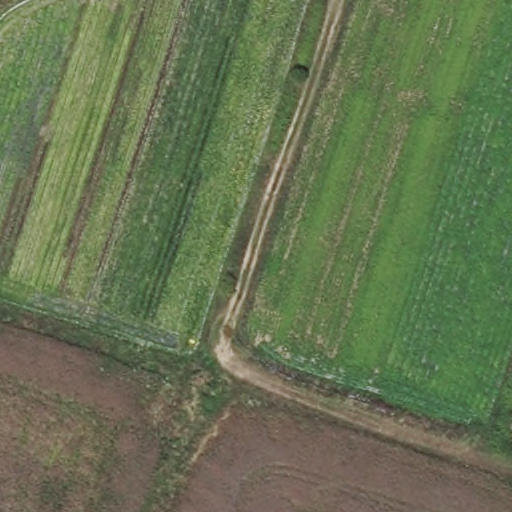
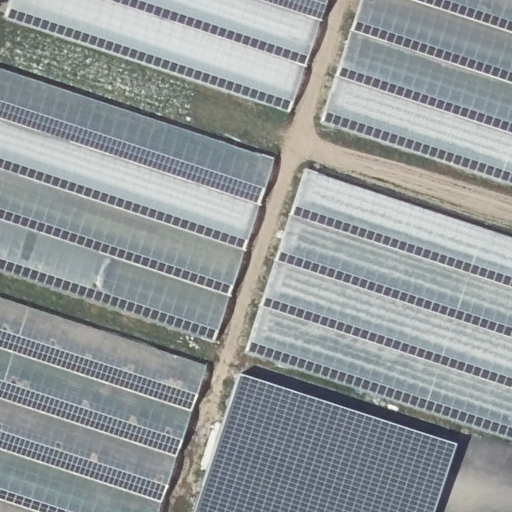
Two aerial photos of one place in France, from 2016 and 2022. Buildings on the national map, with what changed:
new [(289,112),(4,18),(9,0),(326,0),(289,112)]
new [(321,124),(360,0),(512,0),(512,186),(321,124)]
new [(214,341),(0,271),(0,68),(273,159),(214,341)]
new [(512,236),(512,440),(245,352),(305,167),(512,236)]

